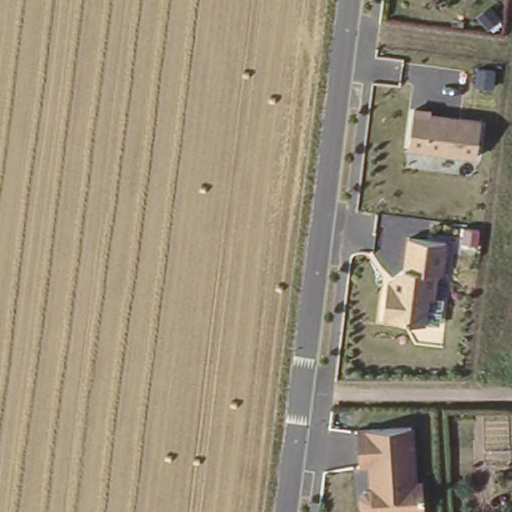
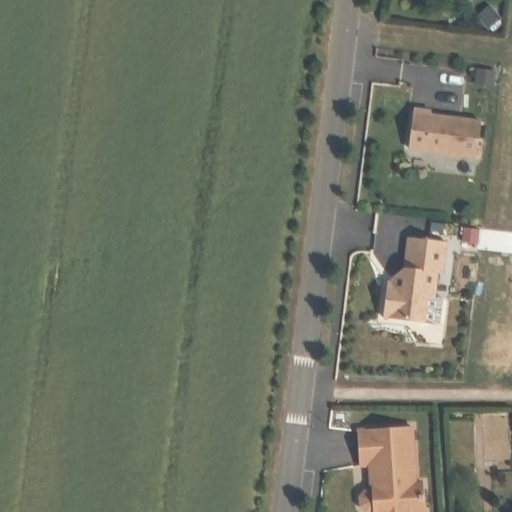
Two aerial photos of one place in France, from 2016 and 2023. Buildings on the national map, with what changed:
unchanged [(473,158),(410,148),(416,106),(431,107),(430,113),(479,116),(473,158)]
unchanged [(447,238),(444,274),(436,274),(433,300),(425,299),(423,324),(382,318),(389,278),(402,268),(407,234),(447,238)]
unchanged [(415,423),(419,478),(423,478),(426,512),(370,512),(369,511),(364,510),(361,504),(360,501),(360,496),(360,492),(363,489),(369,486),(368,464),(359,465),(356,426),(415,423)]

